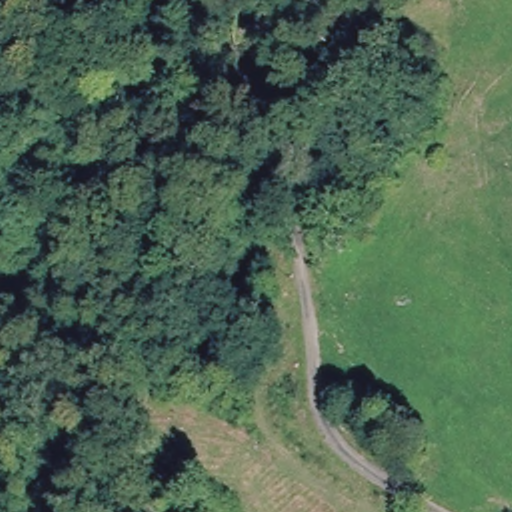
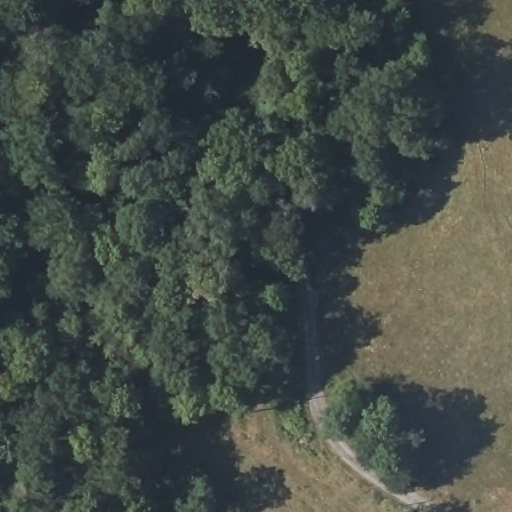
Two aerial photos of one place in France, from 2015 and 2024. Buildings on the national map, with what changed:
[]

